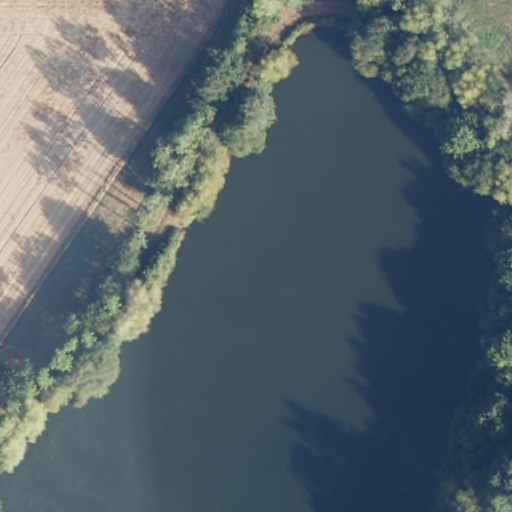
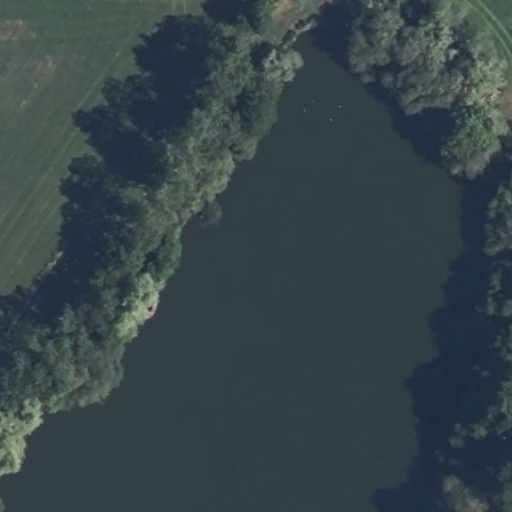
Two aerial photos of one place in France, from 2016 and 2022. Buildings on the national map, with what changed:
[]

